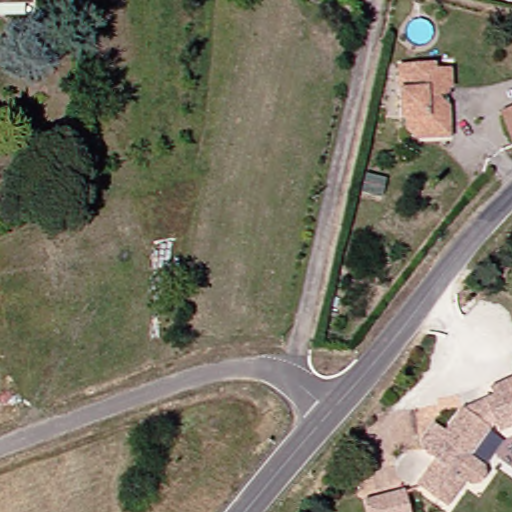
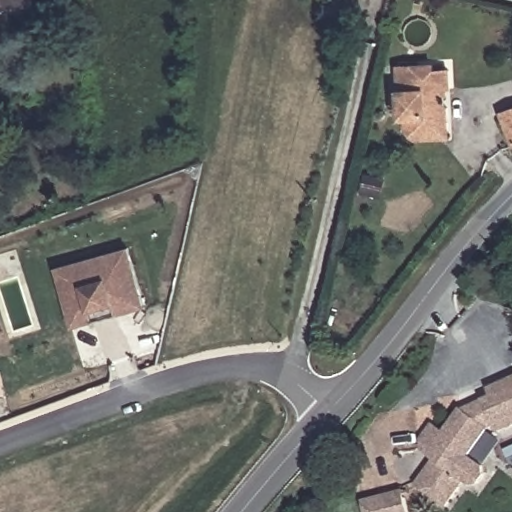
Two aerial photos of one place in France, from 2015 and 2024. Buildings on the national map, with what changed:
unchanged [(0,2),(0,0),(32,0),(32,2),(0,2)]
unchanged [(455,73),(456,91),(441,91),(441,100),(452,112),(453,132),(445,142),(422,143),(412,134),(412,121),(406,121),(404,69),(439,67),(439,73),(455,73)]
unchanged [(512,109),(512,137),(503,112),(512,109)]
new [(71,326),(55,266),(130,248),(146,307),(71,326)]
unchanged [(498,426),(490,429),(469,453),(485,467),(484,476),(476,484),(467,486),(462,482),(443,502),(415,478),(435,455),(423,444),(422,436),(436,420),(445,427),(464,406),(467,408),(496,394),(494,388),(512,379),(512,429),(501,433),(498,426)]
unchanged [(416,512),(373,512),(370,499),(410,489),(416,512)]

